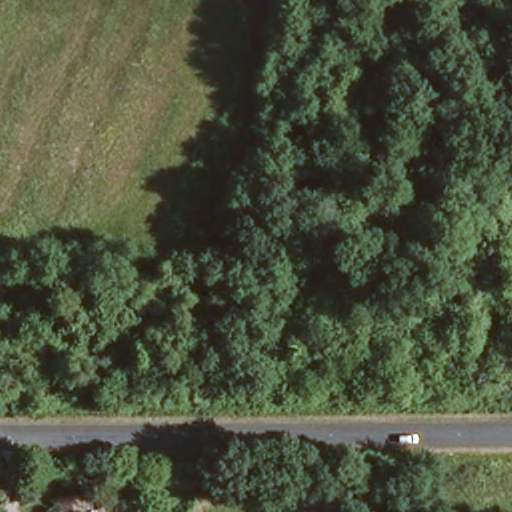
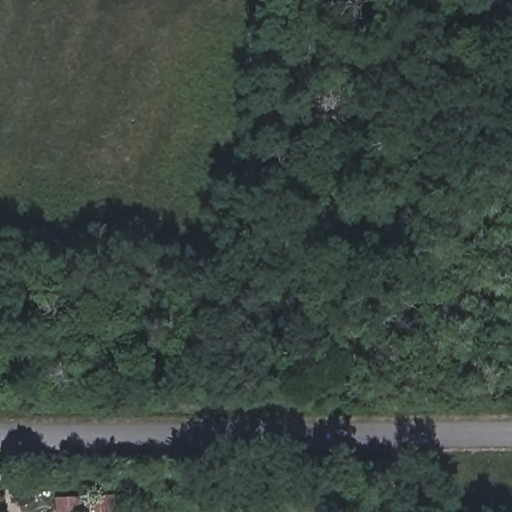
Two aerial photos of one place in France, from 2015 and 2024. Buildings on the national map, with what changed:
unchanged [(90,507),(90,512),(69,512),(70,506),(90,507)]

